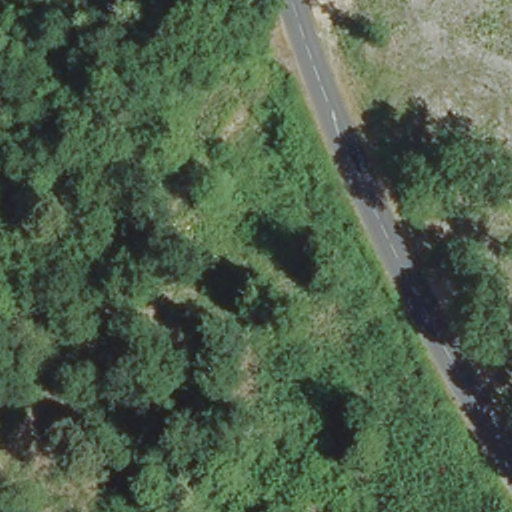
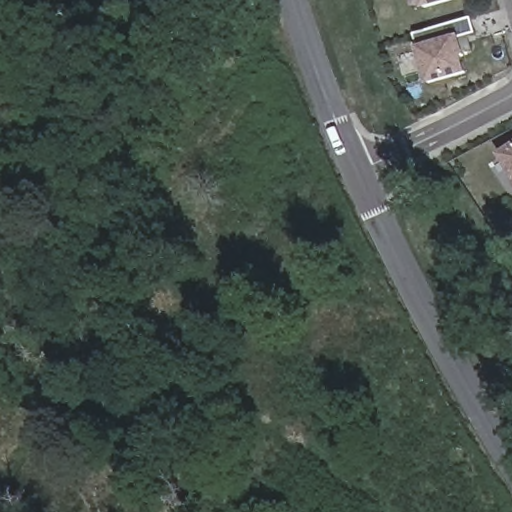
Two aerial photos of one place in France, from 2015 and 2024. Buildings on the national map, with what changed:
new [(422,9),(420,0),(460,0),(422,9)]
new [(461,37),(466,57),(463,58),(468,75),(427,87),(416,48),(414,35),(472,18),(476,34),(461,37)]
new [(512,147),(512,175),(499,156),(512,147)]
new [(512,181),(512,184),(510,182),(512,181)]

